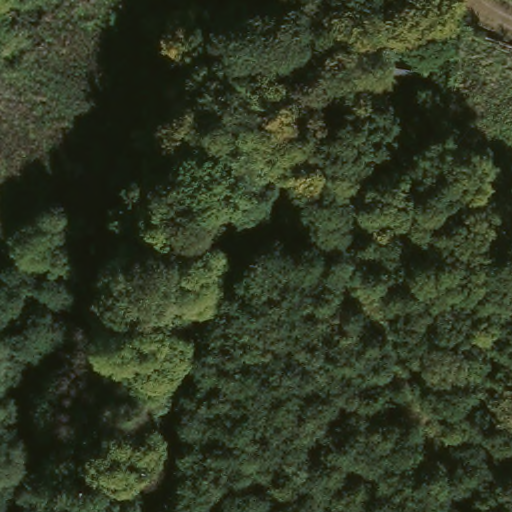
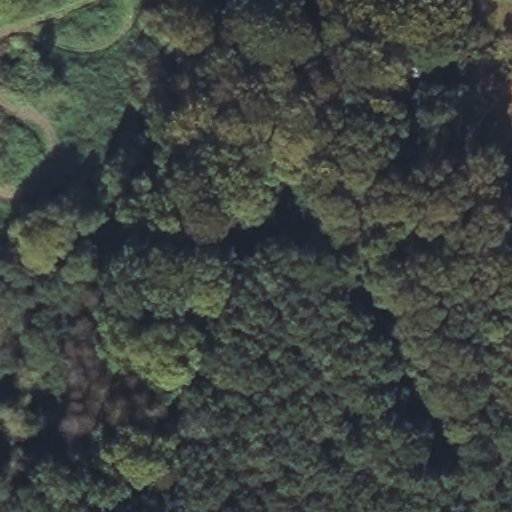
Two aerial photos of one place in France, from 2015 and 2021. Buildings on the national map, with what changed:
unchanged [(406,63),(407,39),(437,41),(436,65),(406,63)]

